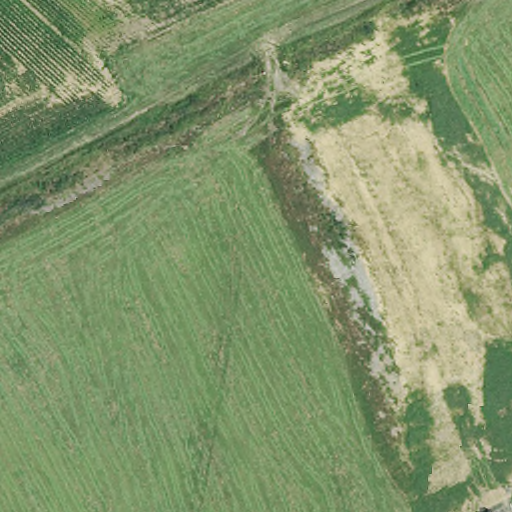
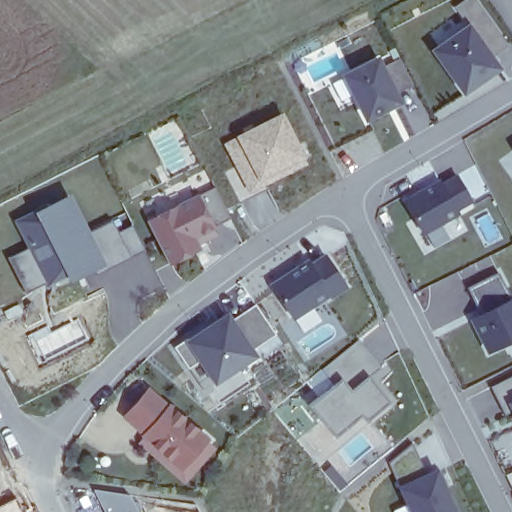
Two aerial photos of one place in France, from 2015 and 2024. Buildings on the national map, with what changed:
new [(455,6),(464,0),(478,0),(510,45),(492,57),(500,67),(465,92),(435,50),(470,25),(455,6)]
new [(365,122),(342,74),(380,56),(385,64),(398,58),(412,84),(397,91),(403,103),(365,122)]
new [(281,113),(308,167),(249,197),(222,145),(281,113)]
new [(510,148),(512,147),(512,151),(510,148)]
new [(458,175),(472,200),(457,208),(443,184),(458,175)]
new [(405,200),(440,180),(458,212),(423,232),(405,200)]
new [(145,223),(177,206),(183,217),(202,207),(197,198),(214,189),(230,221),(213,228),(217,231),(193,240),(200,253),(170,266),(145,223)]
new [(132,256),(97,274),(82,243),(70,249),(80,268),(49,283),(47,280),(42,283),(33,267),(40,264),(17,220),(40,209),(40,211),(69,196),(87,232),(113,219),(119,231),(133,224),(146,249),(132,256)]
new [(42,283),(47,280),(48,281),(26,292),(8,257),(30,246),(40,264),(33,267),(42,283)]
new [(347,289),(292,323),(273,291),(324,256),(347,289)]
new [(468,287),(500,271),(512,296),(512,299),(482,314),(468,287)]
new [(512,299),(512,340),(490,351),(473,318),(512,299)]
new [(254,350),(258,355),(215,385),(200,362),(190,368),(175,346),(185,340),(228,310),(234,318),(256,303),(277,334),(254,350)]
new [(362,414),(336,435),(310,404),(337,383),(325,368),(358,340),(381,367),(365,381),(370,377),(377,386),(390,401),(367,420),(362,414)]
new [(505,415),(490,386),(512,376),(512,412),(505,415)]
new [(184,484),(137,444),(143,436),(121,417),(150,383),(218,444),(184,484)]
new [(403,487),(403,488),(402,489),(390,462),(413,442),(428,475),(403,487)]
new [(442,469),(442,470),(448,485),(449,486),(446,487),(452,498),(450,499),(455,512),(414,512),(403,489),(403,487),(442,469)]
new [(22,512),(0,512),(0,504),(15,496),(22,512)]

